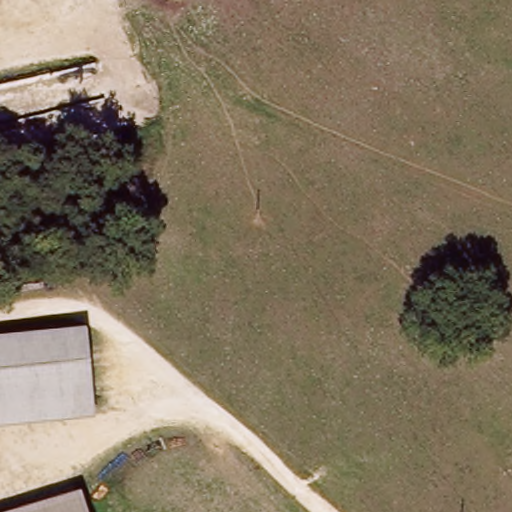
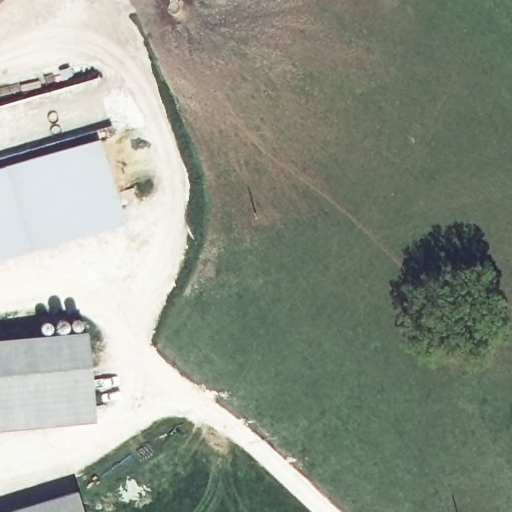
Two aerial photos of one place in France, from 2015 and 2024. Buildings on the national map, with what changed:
new [(95,144),(113,208),(0,241),(0,172),(95,144)]
unchanged [(87,331),(95,419),(0,429),(0,340),(87,331)]
unchanged [(18,512),(81,494),(87,512),(18,512)]

